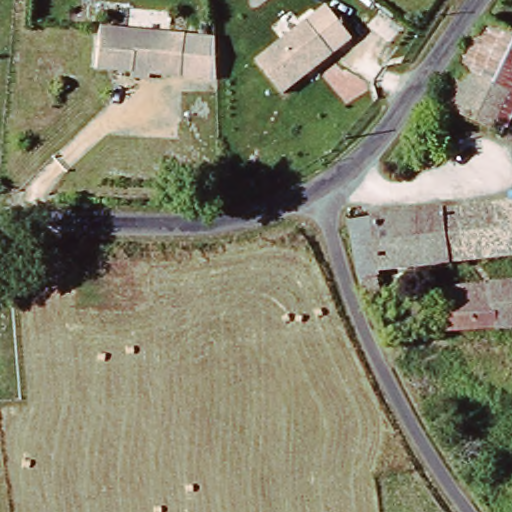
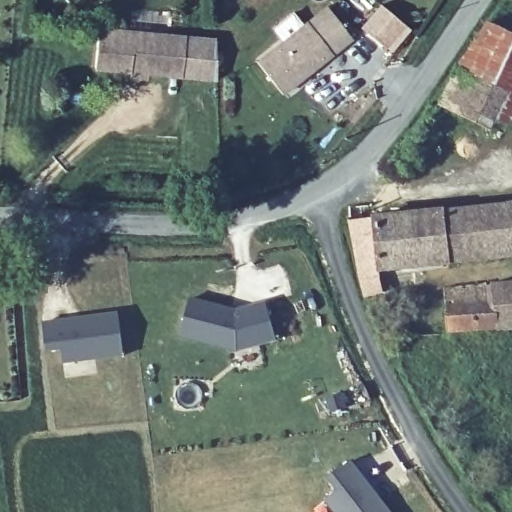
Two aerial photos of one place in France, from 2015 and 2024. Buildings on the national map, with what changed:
unchanged [(307,22),(328,5),(354,37),(333,54),(307,22)]
new [(381,8),(404,27),(386,48),(363,29),(381,8)]
unchanged [(260,60),(307,22),(333,54),(284,92),(260,60)]
unchanged [(454,75),(489,24),(512,35),(512,121),(503,138),(440,103),(454,75)]
unchanged [(183,73),(95,65),(99,26),(186,34),(183,73)]
unchanged [(186,34),(217,38),(217,84),(182,81),(183,73),(186,34)]
unchanged [(380,272),(380,278),(354,283),(347,223),(512,201),(512,253),(380,272)]
unchanged [(442,332),(440,287),(512,283),(512,329),(442,332)]
new [(276,341),(236,352),(179,336),(189,300),(236,313),(266,305),(276,341)]
new [(64,364),(62,349),(47,351),(44,324),(76,320),(87,319),(120,315),(124,357),(64,364)]
new [(344,410),(328,414),(324,399),(340,395),(344,410)]
new [(329,512),(326,508),(338,498),(329,486),(350,470),(383,512),(329,512)]

